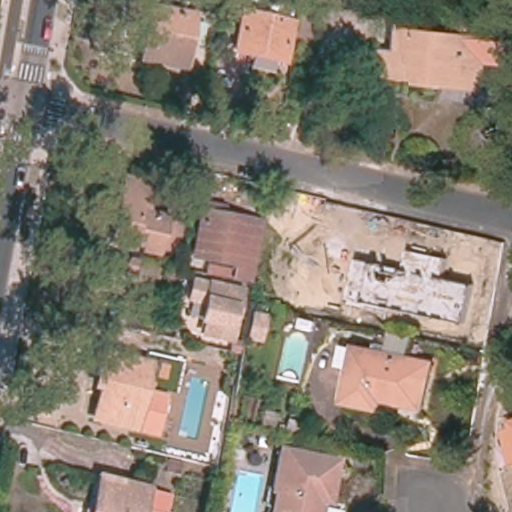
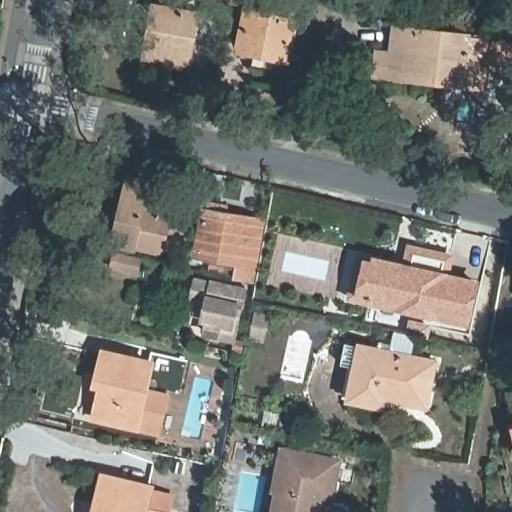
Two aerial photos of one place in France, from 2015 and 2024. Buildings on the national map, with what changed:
unchanged [(195,13),(187,61),(145,54),(149,35),(152,17),(154,6),(195,13)]
unchanged [(271,55),(238,49),(245,9),(289,17),(284,52),(283,57),(271,55)]
unchanged [(374,74),(377,53),(392,55),(396,28),(420,31),(451,35),(512,44),(512,67),(487,64),(482,87),(475,86),(453,83),(389,76),(374,74)]
unchanged [(144,181),(140,200),(137,200),(135,204),(164,211),(164,217),(180,220),(173,255),(109,240),(122,177),(144,181)]
unchanged [(201,212),(203,213),(204,203),(221,206),(219,215),(259,221),(251,265),(253,265),(251,280),(220,275),(221,266),(233,269),(235,262),(194,255),(201,212)]
new [(453,274),(479,280),(468,326),(354,301),(349,300),(359,254),(374,257),(404,263),(408,244),(455,254),(453,274)]
demolished [(450,256),(436,318),(404,310),(415,265),(408,263),(411,247),(450,256)]
unchanged [(162,262),(158,277),(130,270),(133,255),(162,262)]
unchanged [(233,326),(199,321),(203,301),(191,299),(193,282),(206,284),(240,289),(233,326)]
unchanged [(377,405),(355,400),(347,399),(359,344),(367,346),(441,362),(431,405),(391,397),(389,408),(377,405)]
unchanged [(94,415),(103,376),(97,375),(103,352),(153,365),(147,390),(170,397),(160,432),(94,415)]
new [(512,435),(510,428),(512,428),(512,435)]
unchanged [(278,490),(274,489),(281,451),(335,462),(331,482),(327,501),(324,500),(322,512),(274,512),(278,490)]
unchanged [(189,465),(185,481),(167,476),(171,460),(189,465)]
unchanged [(145,489),(140,510),(150,512),(104,512),(110,481),(145,489)]
unchanged [(97,511),(99,512),(97,512),(97,511)]

